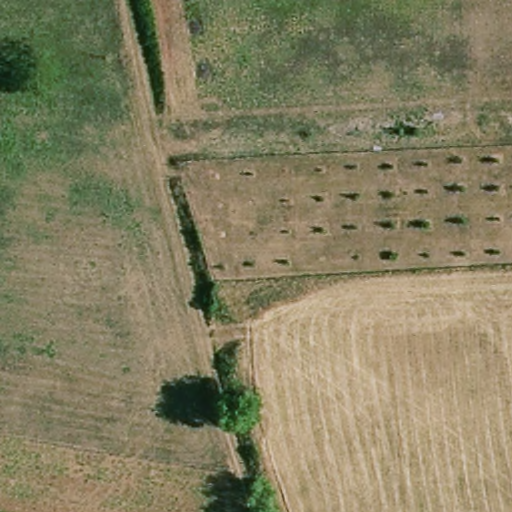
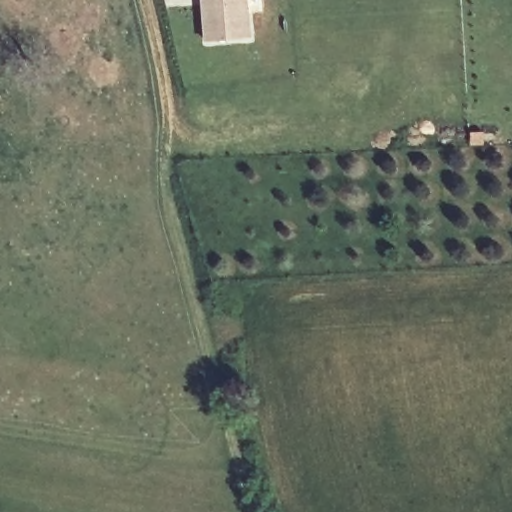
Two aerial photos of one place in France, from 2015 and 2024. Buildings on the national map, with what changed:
new [(209,7),(208,0),(248,0),(250,40),(208,42),(205,7),(209,7)]

